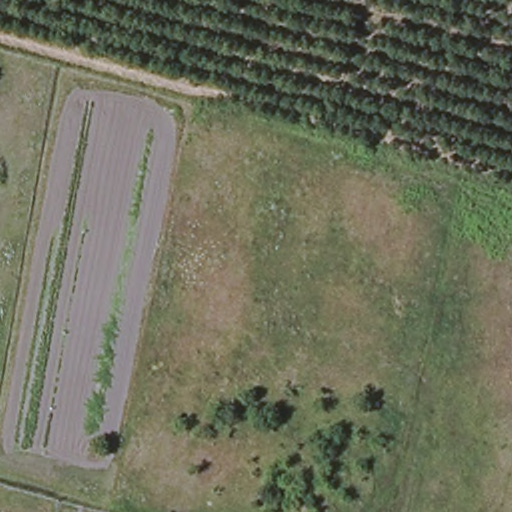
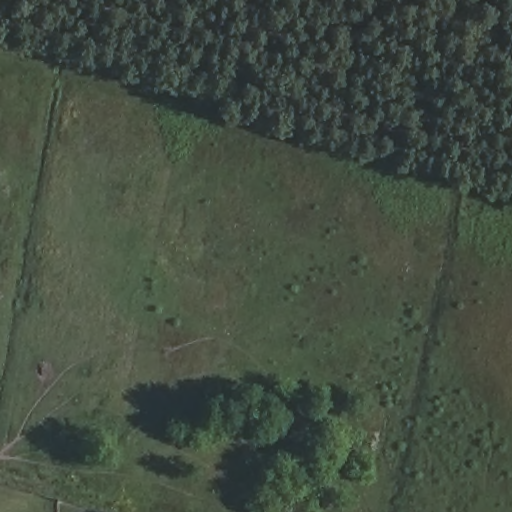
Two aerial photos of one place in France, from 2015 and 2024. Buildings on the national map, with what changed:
[]

